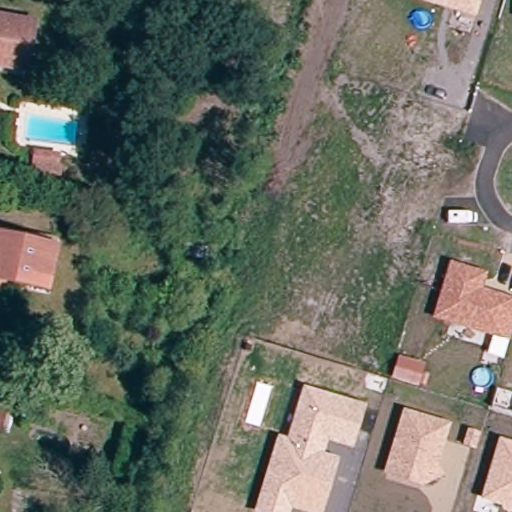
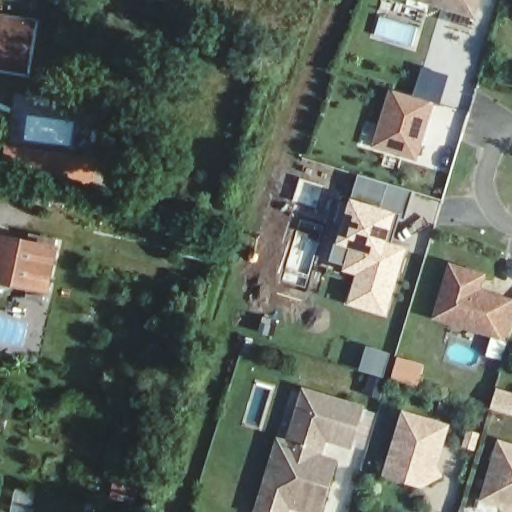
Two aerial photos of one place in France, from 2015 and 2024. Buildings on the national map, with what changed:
unchanged [(418,0),(481,0),(475,18),(418,0)]
unchanged [(32,22),(25,62),(0,58),(0,16),(32,22)]
new [(436,101),(418,161),(371,146),(390,86),(436,101)]
unchanged [(48,169),(46,182),(28,179),(30,166),(48,169)]
new [(387,316),(347,304),(356,274),(342,269),(344,264),(329,259),(359,173),(414,191),(399,244),(408,246),(387,316)]
unchanged [(53,254),(46,293),(13,287),(10,298),(0,295),(0,244),(53,254)]
unchanged [(482,288),(512,297),(512,330),(508,342),(433,319),(450,261),(487,272),(482,288)]
new [(396,366),(421,373),(416,391),(391,384),(396,366)]
unchanged [(367,404),(353,450),(327,442),(323,453),(341,459),(324,512),(299,512),(291,510),(291,512),(253,512),(277,436),(286,439),(303,385),(367,404)]
unchanged [(450,425),(437,467),(443,477),(422,486),(383,474),(402,411),(450,425)]
unchanged [(499,505),(480,499),(498,438),(512,442),(512,512),(503,512),(501,512),(499,505)]

